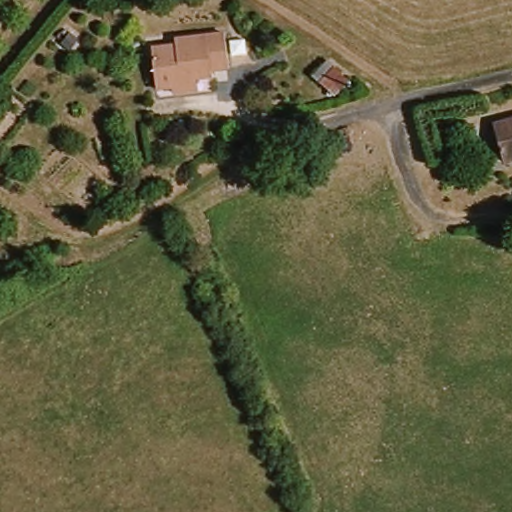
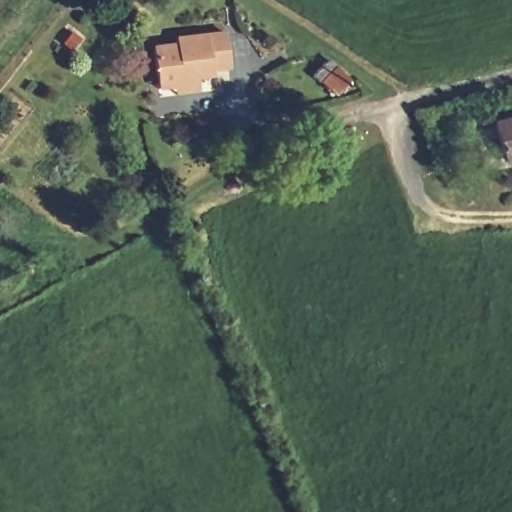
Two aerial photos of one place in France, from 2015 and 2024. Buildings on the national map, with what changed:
unchanged [(184,47),(182,40),(231,37),(236,71),(217,74),(217,79),(193,83),(161,86),(157,64),(156,51),(170,48),(184,47)]
unchanged [(326,79),(339,64),(353,77),(340,91),(326,79)]
unchanged [(509,119),(512,119),(512,129),(509,119)]

